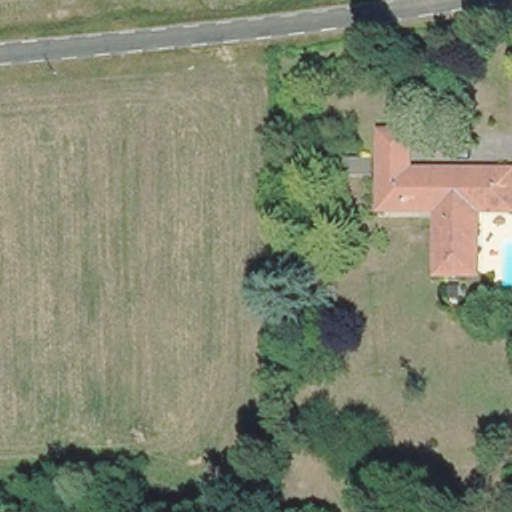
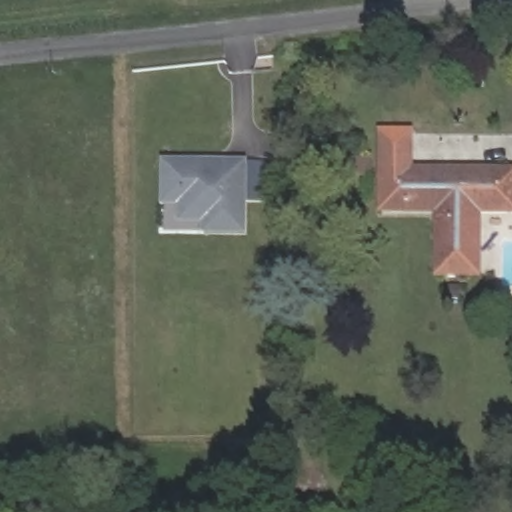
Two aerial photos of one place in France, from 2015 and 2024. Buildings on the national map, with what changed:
unchanged [(506,209),(472,209),(471,274),(432,273),(433,209),(376,209),(377,133),(405,133),(404,169),(507,171),(506,209)]
new [(202,233),(201,222),(178,222),(178,205),(161,205),(161,159),(247,159),(248,233),(202,233)]
unchanged [(458,286),(458,298),(448,298),(449,286),(458,286)]

